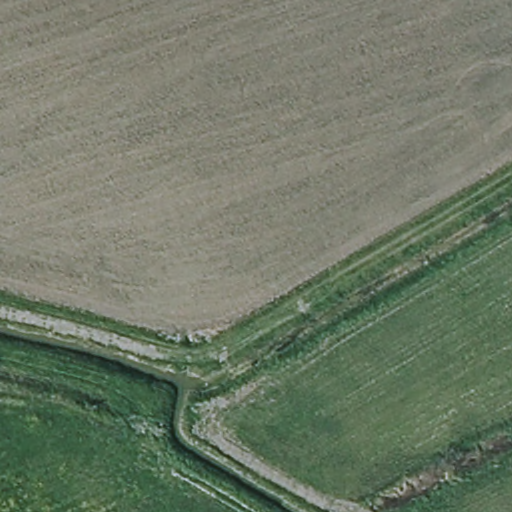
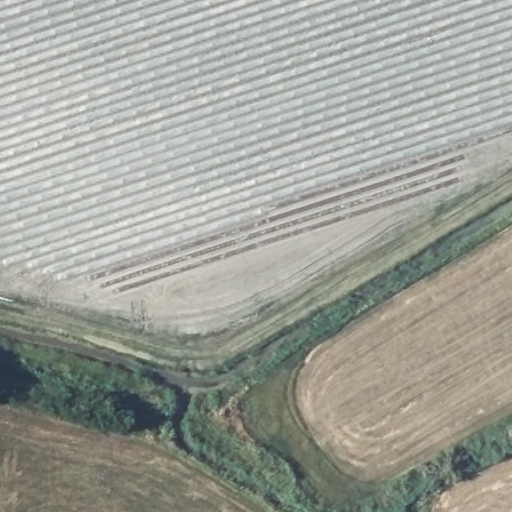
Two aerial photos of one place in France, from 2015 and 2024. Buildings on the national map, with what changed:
[]

